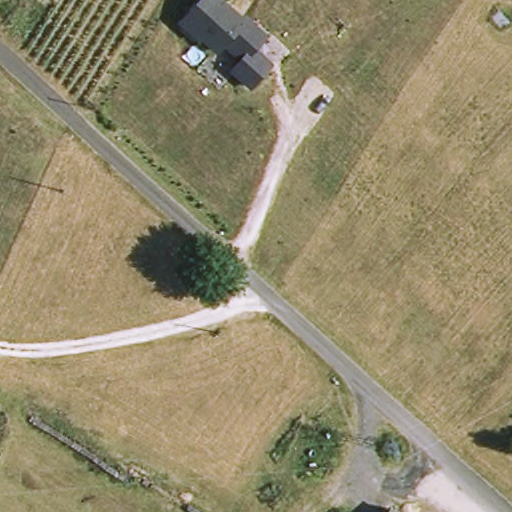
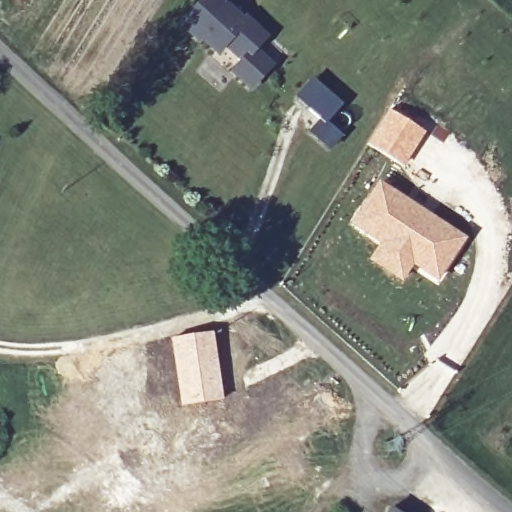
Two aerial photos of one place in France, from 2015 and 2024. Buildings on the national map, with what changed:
unchanged [(226,45),(219,53),(202,37),(199,40),(180,22),(200,0),(226,0),(242,15),(247,10),(270,32),(260,45),(277,61),(251,90),(230,71),(240,59),(226,45)]
new [(343,105),(327,122),(342,137),(330,150),(311,133),(320,118),(295,97),(311,79),(343,105)]
new [(388,108),(425,132),(403,167),(366,142),(388,108)]
new [(353,220),(368,199),(380,181),(393,190),(462,238),(437,276),(411,260),(400,275),(372,256),(383,240),(353,220)]
new [(213,330),(223,400),(181,406),(170,337),(213,330)]
unchanged [(406,512),(394,512),(397,506),(406,512)]

